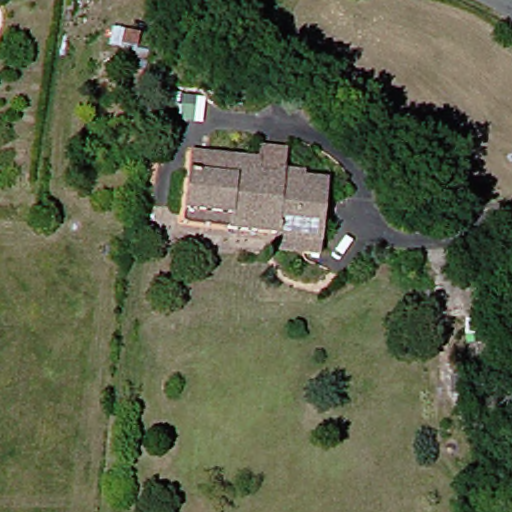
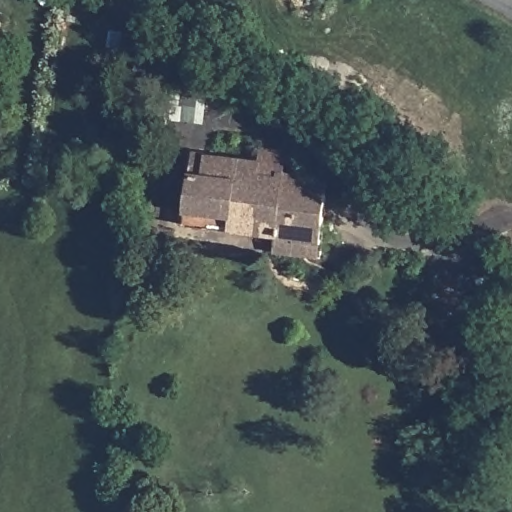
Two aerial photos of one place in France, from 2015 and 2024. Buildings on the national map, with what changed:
unchanged [(273,251),(274,239),(234,235),(179,227),(180,215),(185,175),(186,156),(200,159),(257,164),(257,154),(275,156),(275,174),(301,177),(301,182),(324,185),(319,243),(318,256),(273,251)]

